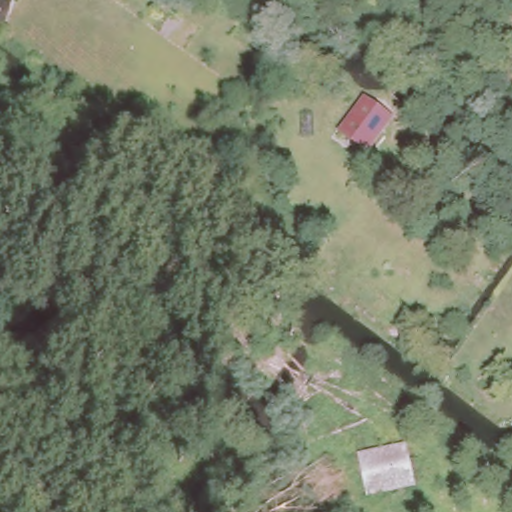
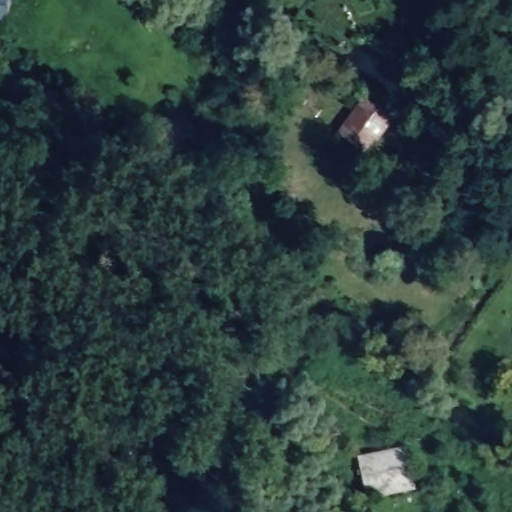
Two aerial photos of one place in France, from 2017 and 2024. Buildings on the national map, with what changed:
unchanged [(16,9),(0,7),(0,0),(16,0),(16,9)]
unchanged [(395,114),(366,154),(337,133),(365,94),(395,114)]
unchanged [(125,219),(112,234),(102,221),(110,206),(125,219)]
unchanged [(398,453),(400,464),(408,464),(411,482),(404,483),(405,491),(370,495),(366,457),(398,453)]

